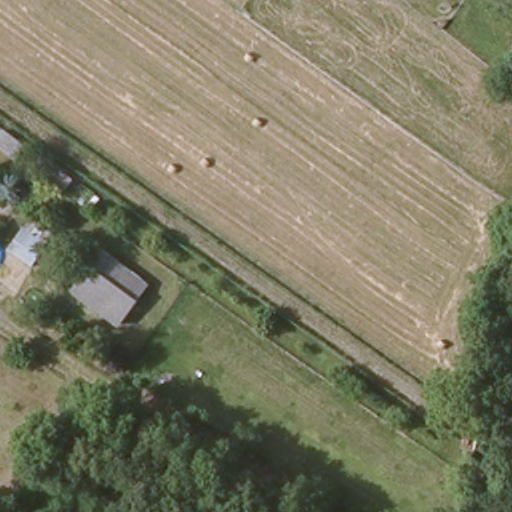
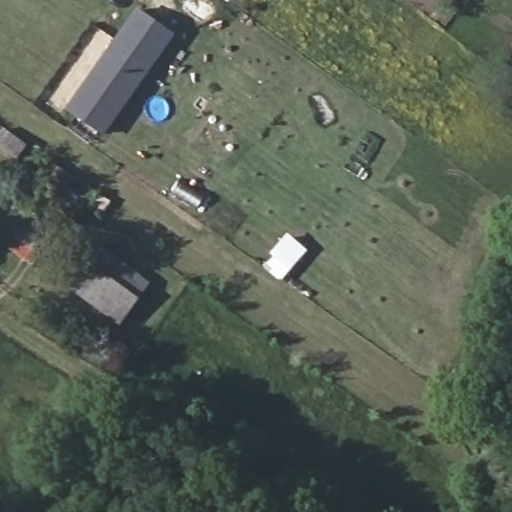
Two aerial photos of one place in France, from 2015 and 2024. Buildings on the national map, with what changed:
new [(105,135),(66,108),(137,8),(175,35),(105,135)]
new [(30,146),(19,160),(0,147),(0,132),(4,127),(30,146)]
unchanged [(123,326),(64,291),(102,246),(155,283),(123,326)]

